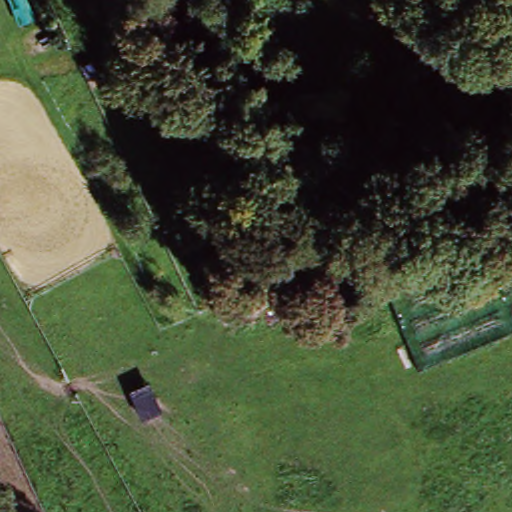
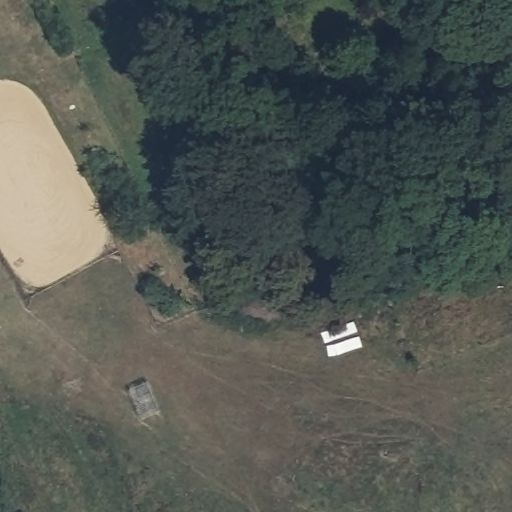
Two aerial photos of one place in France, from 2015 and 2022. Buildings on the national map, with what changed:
[]

